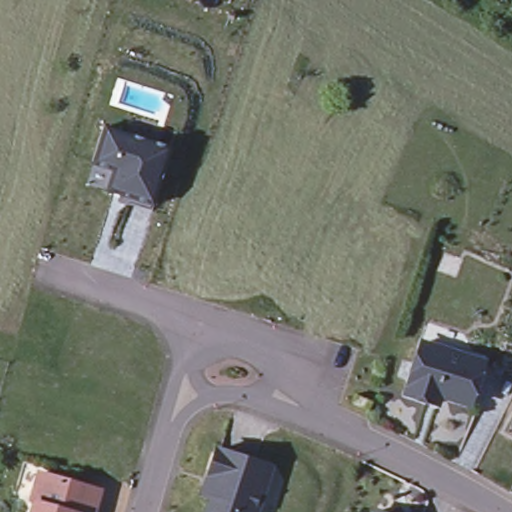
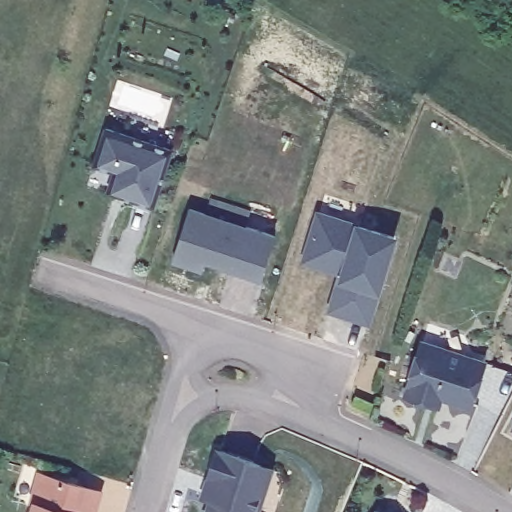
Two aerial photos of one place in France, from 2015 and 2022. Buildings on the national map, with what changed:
unchanged [(108,130),(163,146),(171,150),(154,206),(110,193),(115,172),(97,166),(108,130)]
new [(189,207),(276,234),(261,281),(204,262),(201,272),(171,261),(189,207)]
new [(342,270),(304,258),(306,251),(319,212),(394,236),(368,319),(337,310),(331,307),(342,270)]
unchanged [(457,344),(467,360),(477,363),(461,412),(431,403),(428,412),(397,402),(419,332),(457,344)]
unchanged [(368,410),(354,405),(356,397),(371,402),(368,410)]
unchanged [(254,485),(263,488),(255,512),(207,512),(213,495),(208,493),(204,492),(211,473),(218,448),(261,462),(254,485)]
unchanged [(30,501),(26,500),(34,472),(94,489),(88,512),(27,512),(30,501)]
unchanged [(380,512),(377,512),(378,511),(380,512)]

